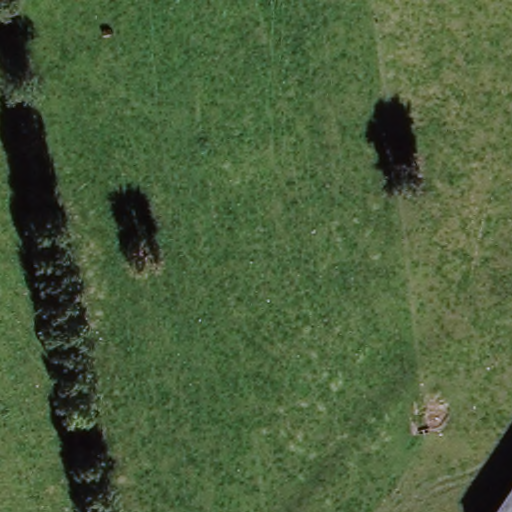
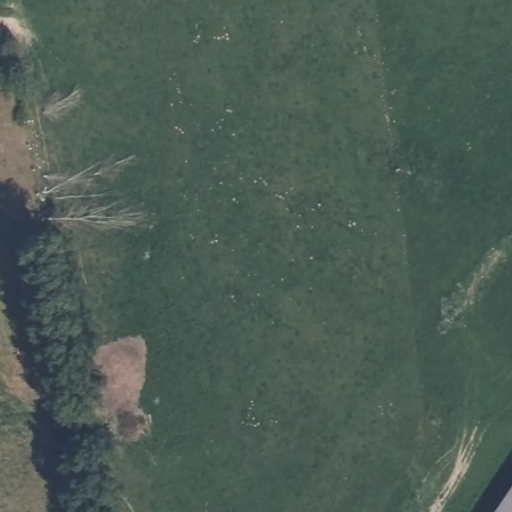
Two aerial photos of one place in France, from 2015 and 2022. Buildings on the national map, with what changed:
unchanged [(512,489),(512,512),(496,512),(512,489)]

